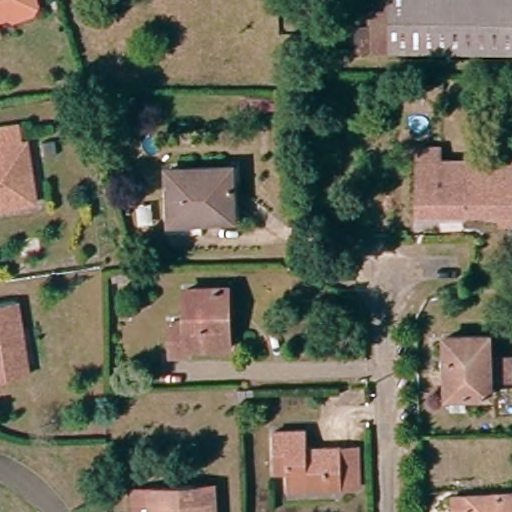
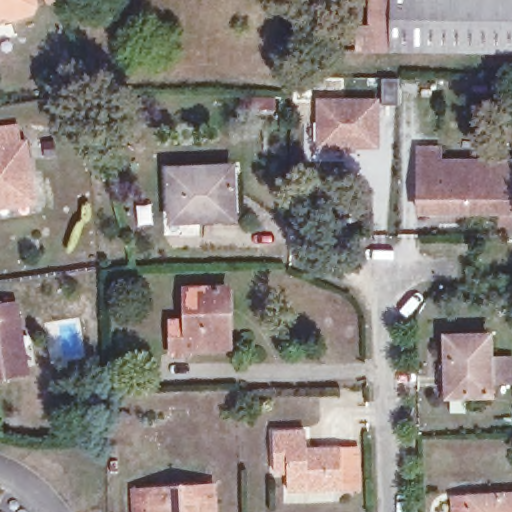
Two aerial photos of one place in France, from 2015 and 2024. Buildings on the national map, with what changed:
unchanged [(39,1),(35,8),(15,15),(8,11),(0,14),(0,0),(38,0),(39,1)]
unchanged [(375,50),(375,0),(512,0),(512,52),(375,50)]
new [(317,149),(317,104),(374,103),(375,148),(351,149),(351,153),(342,153),(342,149),(317,149)]
unchanged [(25,143),(0,147),(0,129),(22,125),(25,143)]
unchanged [(28,143),(38,202),(0,208),(0,147),(25,143),(28,143)]
unchanged [(408,212),(409,161),(409,149),(429,149),(429,161),(459,161),(460,212),(408,212)]
unchanged [(460,212),(459,161),(508,161),(508,211),(508,225),(492,225),(492,212),(460,212)]
unchanged [(170,221),(169,170),(231,168),(232,212),(232,224),(193,225),(193,220),(170,221)]
unchanged [(192,349),(177,350),(176,316),(190,316),(190,287),(232,285),(232,301),(234,348),(192,349)]
unchanged [(0,381),(0,305),(21,301),(25,330),(29,357),(32,376),(0,381)]
unchanged [(487,335),(488,395),(450,396),(449,359),(446,359),(445,337),(487,335)]
unchanged [(357,487),(341,488),(286,488),(286,472),(273,472),(273,432),(305,432),(305,449),(341,449),(357,449),(357,487)]
unchanged [(133,493),(194,487),(213,486),(215,502),(215,512),(135,512),(135,508),(133,493)]
unchanged [(461,512),(460,498),(512,496),(512,512),(461,512)]

